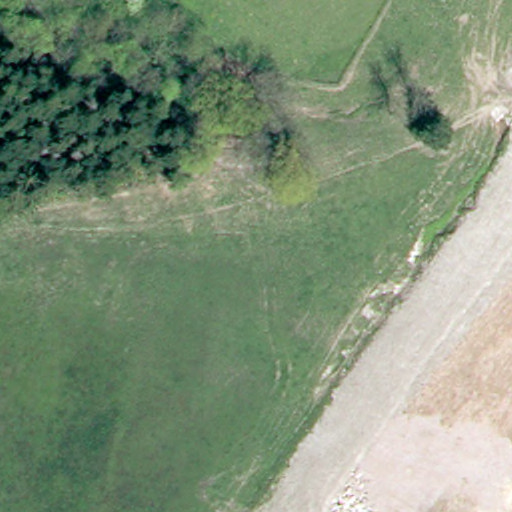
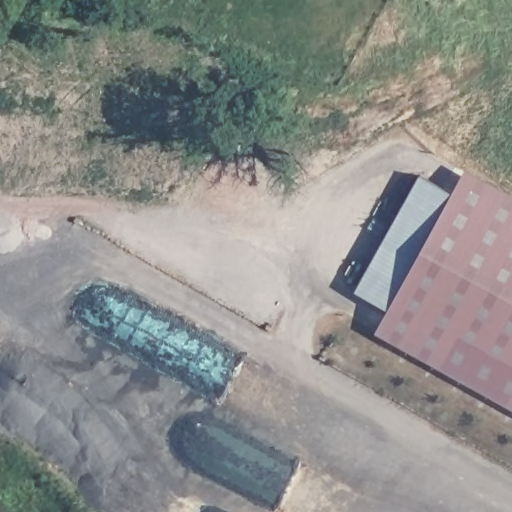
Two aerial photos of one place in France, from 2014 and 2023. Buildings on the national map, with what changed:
new [(452,193),(465,169),(512,195),(512,409),(375,333),(387,309),(354,290),(418,175),(452,193)]

